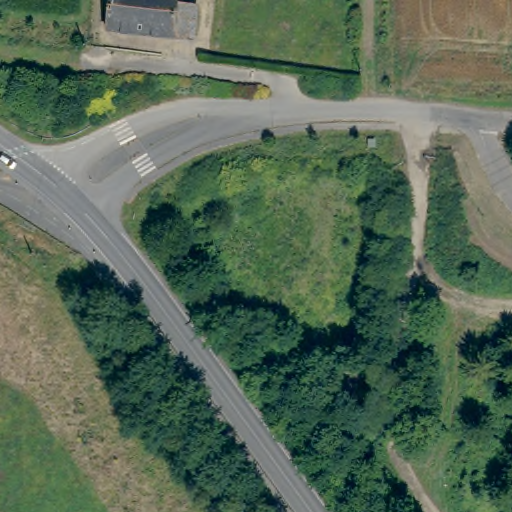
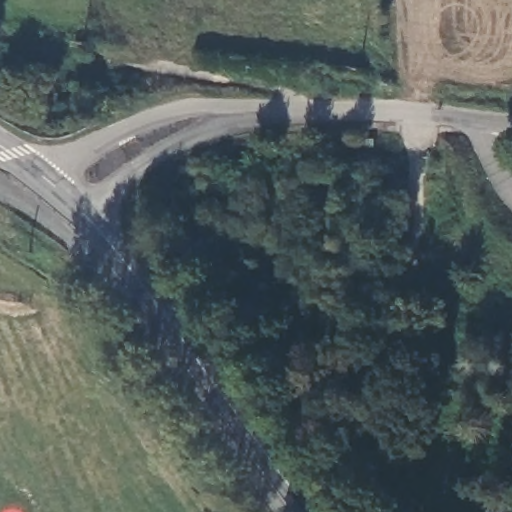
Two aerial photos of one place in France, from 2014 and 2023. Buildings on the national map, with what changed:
demolished [(111,30),(115,0),(182,0),(182,1),(176,36),(111,30)]

